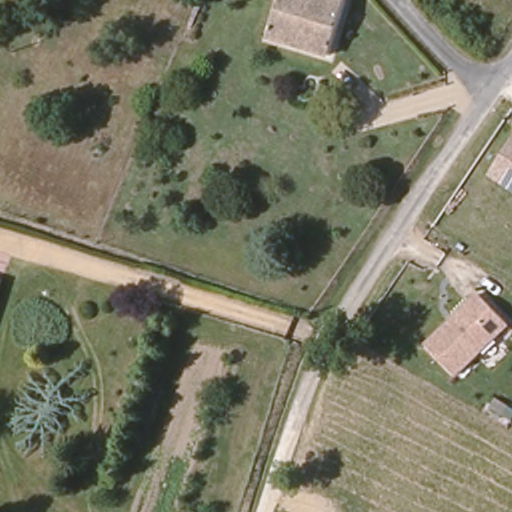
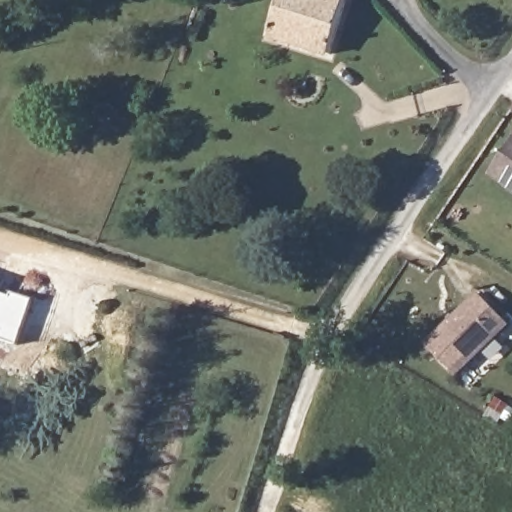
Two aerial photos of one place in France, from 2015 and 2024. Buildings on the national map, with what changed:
unchanged [(332,53),(273,33),(283,0),(348,0),(332,53)]
unchanged [(512,139),(512,192),(488,176),(512,139)]
new [(12,291),(34,299),(19,347),(0,341),(0,331),(0,292),(10,296),(12,291)]
unchanged [(477,294),(508,326),(456,375),(424,343),(477,294)]

